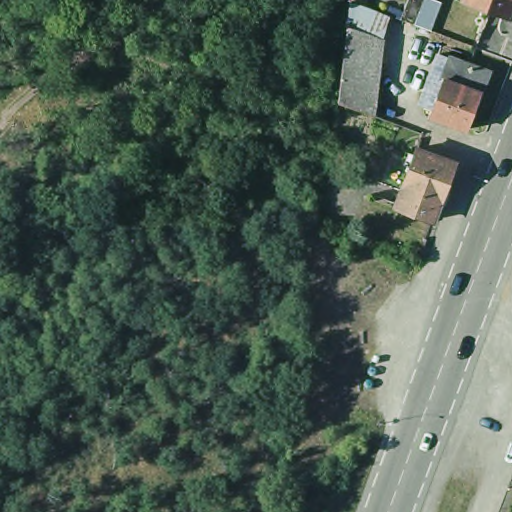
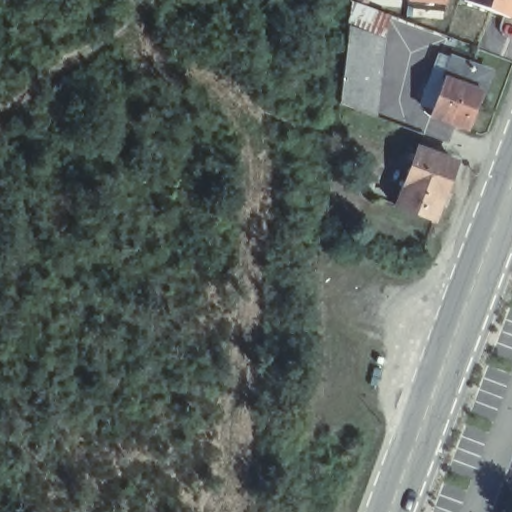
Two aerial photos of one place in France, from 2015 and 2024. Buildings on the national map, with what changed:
unchanged [(398,22),(406,0),(428,8),(420,30),(398,22)]
unchanged [(462,3),(463,0),(510,0),(502,19),(462,3)]
unchanged [(339,30),(342,4),(379,17),(378,42),(339,30)]
unchanged [(339,30),(378,42),(369,118),(330,104),(339,30)]
unchanged [(467,125),(432,112),(434,105),(420,100),(434,66),(439,51),(451,55),(489,69),(467,125)]
unchanged [(395,203),(417,144),(455,159),(433,218),(395,203)]

